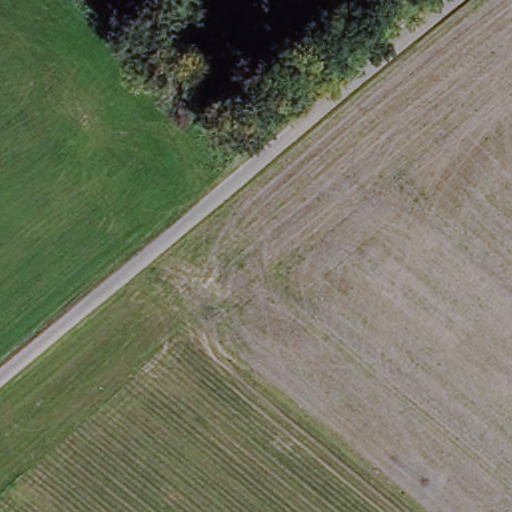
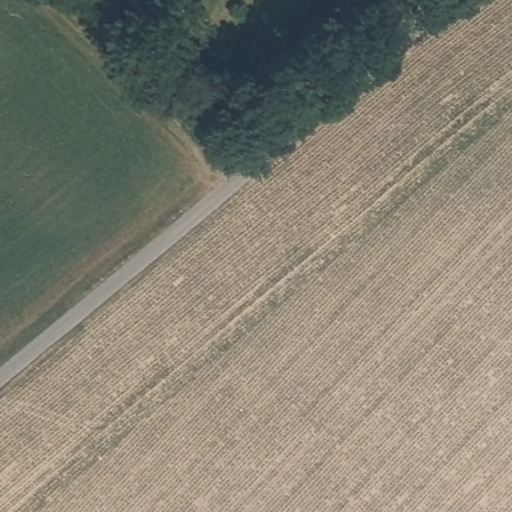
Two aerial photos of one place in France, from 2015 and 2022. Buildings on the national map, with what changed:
unchanged [(159,0),(184,0),(171,12),(159,0)]

